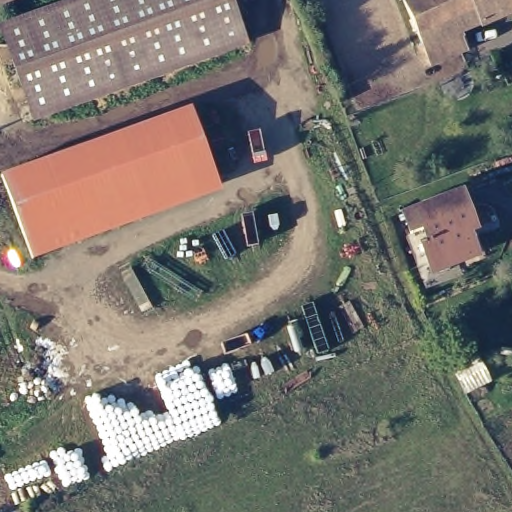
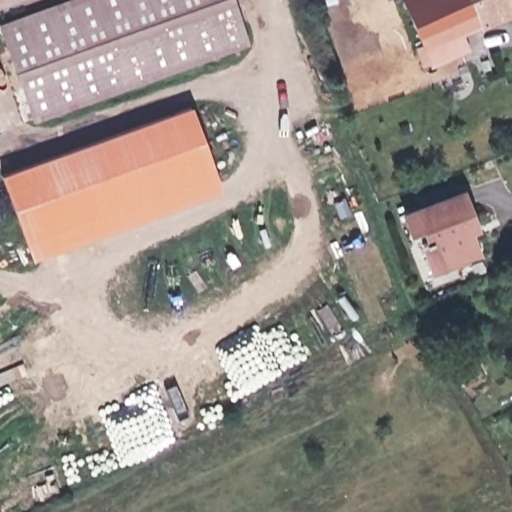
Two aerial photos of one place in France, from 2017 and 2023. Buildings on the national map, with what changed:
unchanged [(11,0),(0,4),(0,0),(11,0)]
unchanged [(225,0),(241,43),(30,118),(0,34),(0,24),(68,0),(225,0)]
unchanged [(482,15),(461,24),(468,44),(424,63),(416,45),(423,41),(405,0),(512,0),(512,6),(484,19),(482,15)]
unchanged [(217,179),(31,247),(23,225),(7,184),(6,182),(9,179),(35,170),(193,112),(204,144),(217,179)]
unchanged [(462,192),(476,225),(469,229),(477,254),(457,262),(454,255),(431,264),(422,240),(427,239),(423,227),(411,230),(404,214),(462,192)]

